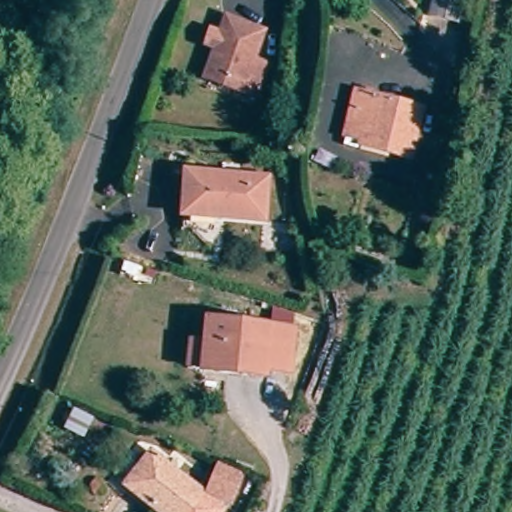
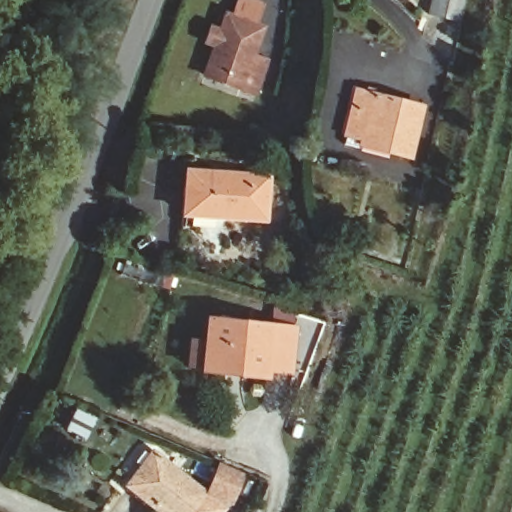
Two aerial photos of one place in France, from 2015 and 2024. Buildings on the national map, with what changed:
unchanged [(431,14),(435,0),(461,0),(457,19),(431,14)]
unchanged [(207,69),(219,17),(266,28),(260,56),(274,60),(268,95),(249,90),(204,81),(207,69)]
unchanged [(367,131),(352,128),(362,88),(423,103),(410,150),(392,145),(365,139),(367,131)]
unchanged [(177,220),(178,205),(180,177),(264,183),(260,225),(219,223),(177,220)]
unchanged [(201,366),(187,364),(191,334),(205,336),(208,316),(295,327),(290,369),(266,366),(265,374),(241,371),(230,369),(201,366)]
unchanged [(219,504),(212,512),(163,512),(121,479),(146,448),(219,504)]
unchanged [(236,493),(214,483),(221,466),(244,475),(236,493)]

